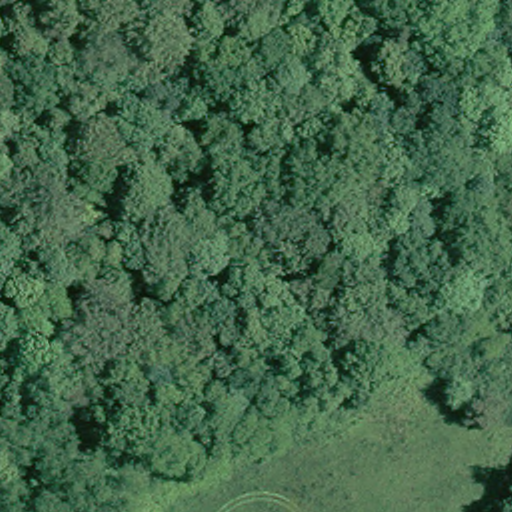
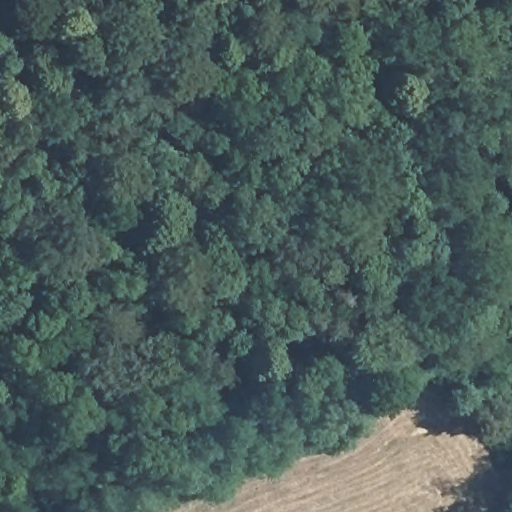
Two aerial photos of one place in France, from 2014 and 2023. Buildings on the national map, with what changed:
[]

